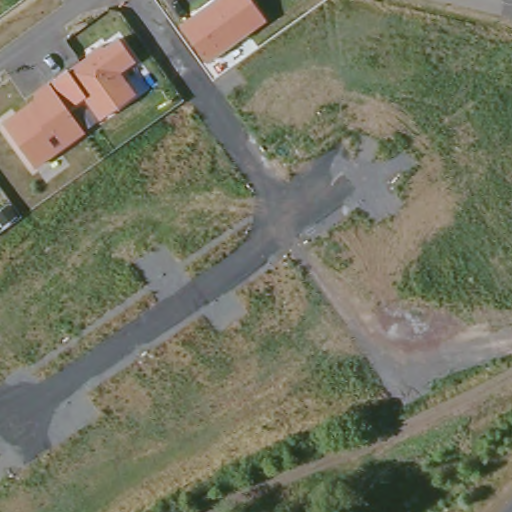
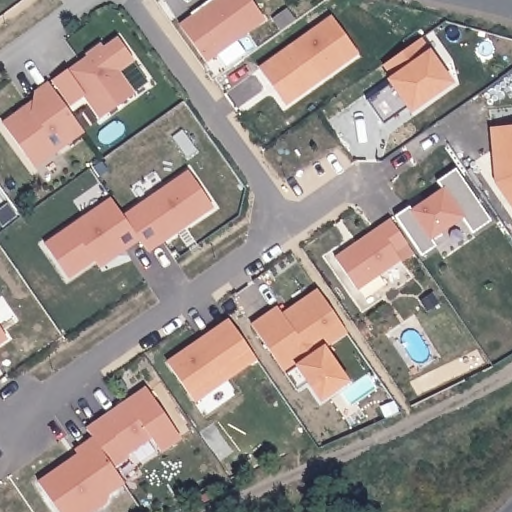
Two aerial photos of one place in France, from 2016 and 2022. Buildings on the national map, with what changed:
unchanged [(180,24),(214,0),(251,0),(265,20),(207,62),(180,24)]
new [(256,71),(328,18),(354,54),(282,107),(272,93),(266,85),(256,71)]
unchanged [(32,100),(34,92),(48,82),(67,68),(87,55),(85,54),(102,43),(104,47),(118,36),(135,61),(121,72),(136,93),(98,120),(85,132),(33,168),(2,121),(32,100)]
new [(416,104),(380,130),(363,106),(387,88),(385,85),(389,82),(380,70),(417,44),(447,88),(419,108),(407,117),(404,113),(416,104)]
new [(502,186),(494,175),(490,130),(512,128),(512,209),(498,188),(502,186)]
new [(392,221),(407,211),(411,217),(421,210),(420,208),(440,194),(435,186),(455,171),(491,223),(473,235),(462,220),(431,241),(437,249),(420,260),(392,221)]
new [(187,177),(211,212),(147,257),(122,222),(187,177)]
new [(138,245),(113,262),(100,260),(67,284),(43,251),(110,204),(138,245)]
new [(348,253),(357,247),(391,223),(407,246),(395,254),(400,263),(357,293),(335,262),(348,253)]
new [(113,262),(98,273),(93,265),(100,260),(113,262)]
new [(310,388),(287,356),(276,364),(252,330),(277,312),(286,323),(293,318),(290,314),(318,294),(347,335),(323,351),(337,369),(310,388)]
new [(195,407),(167,369),(201,345),(205,350),(233,330),(256,363),(195,407)]
new [(5,346),(0,350),(0,339),(5,346)]
new [(285,377),(276,364),(287,356),(297,369),(285,377)]
new [(127,461),(128,463),(113,474),(87,436),(145,395),(180,444),(160,458),(150,444),(127,461)]
new [(40,490),(79,462),(76,458),(93,446),(124,489),(107,501),(107,508),(101,512),(55,512),(40,490)]

